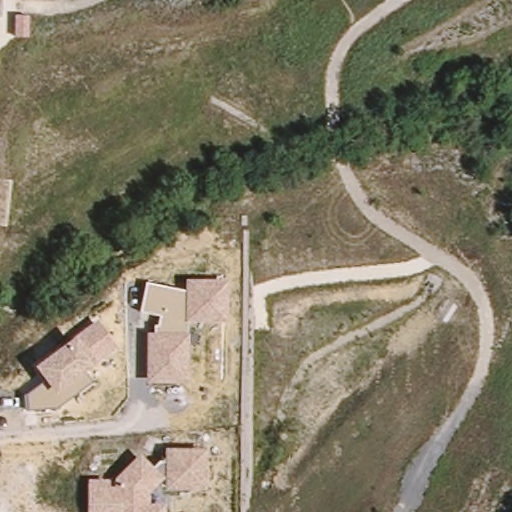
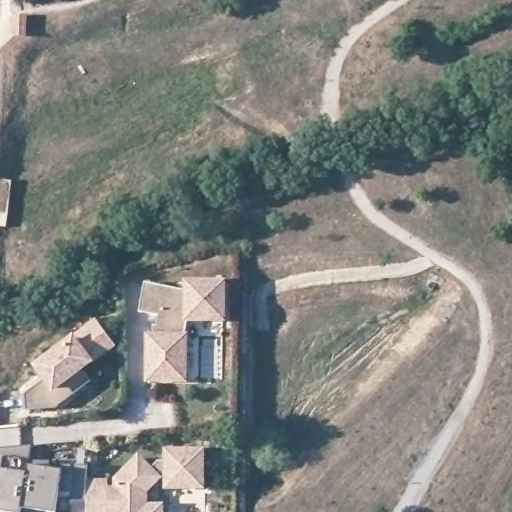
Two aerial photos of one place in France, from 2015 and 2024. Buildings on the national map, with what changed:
unchanged [(185,290),(185,280),(228,279),(226,323),(189,323),(185,334),(189,334),(188,384),(146,384),(148,332),(154,332),(154,324),(160,324),(161,315),(140,312),(146,282),(185,290)]
unchanged [(116,346),(85,371),(93,382),(57,409),(25,409),(25,394),(44,379),(33,367),(98,319),(116,346)]
new [(73,499),(72,492),(60,492),(56,512),(50,512),(23,508),(22,512),(0,512),(0,449),(31,447),(28,465),(63,471),(63,465),(86,465),(88,481),(88,499),(73,499)]
unchanged [(153,465),(160,458),(165,459),(165,449),(208,447),(208,492),(165,492),(165,477),(149,494),(149,504),(166,504),(166,512),(88,512),(88,481),(111,481),(139,454),(153,465)]

